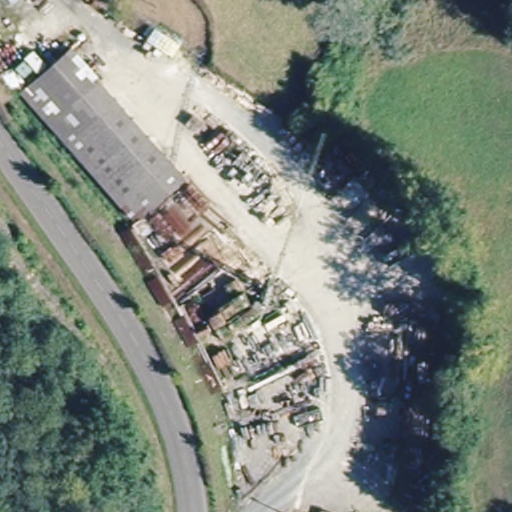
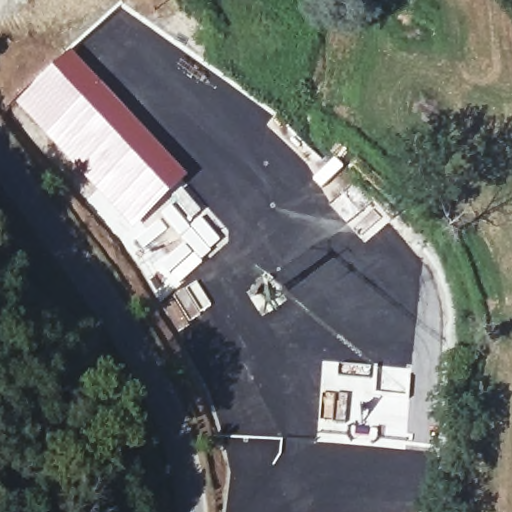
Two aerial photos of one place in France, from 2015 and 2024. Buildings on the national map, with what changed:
unchanged [(21,99),(71,54),(155,146),(106,193),(21,99)]
unchanged [(155,146),(185,178),(136,224),(106,193),(155,146)]

